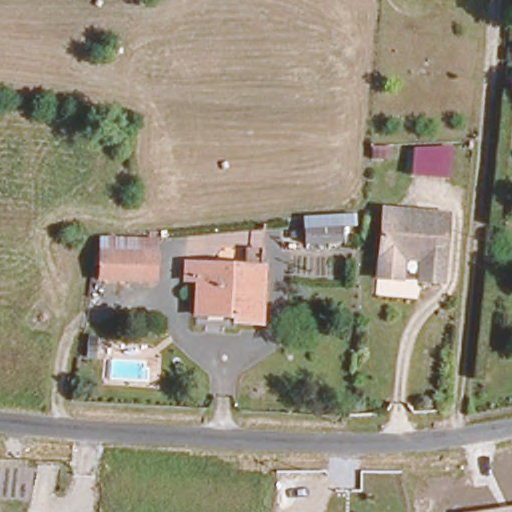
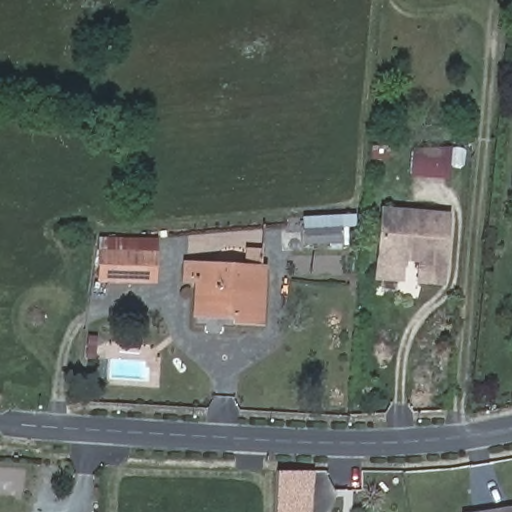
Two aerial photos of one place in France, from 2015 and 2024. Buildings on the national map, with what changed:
unchanged [(373,279),(381,206),(449,212),(442,285),(412,283),(414,263),(402,262),(401,282),(373,279)]
unchanged [(345,247),(303,249),(303,223),(344,220),(345,247)]
unchanged [(100,272),(102,243),(103,235),(156,239),(156,248),(154,276),(100,272)]
unchanged [(264,323),(238,322),(239,317),(201,314),(204,280),(192,280),(193,265),(251,269),(252,252),(266,253),(264,270),(268,270),(264,323)]
new [(315,472),(312,512),(276,512),(278,471),(315,472)]
unchanged [(472,512),(512,507),(512,512),(472,512)]

